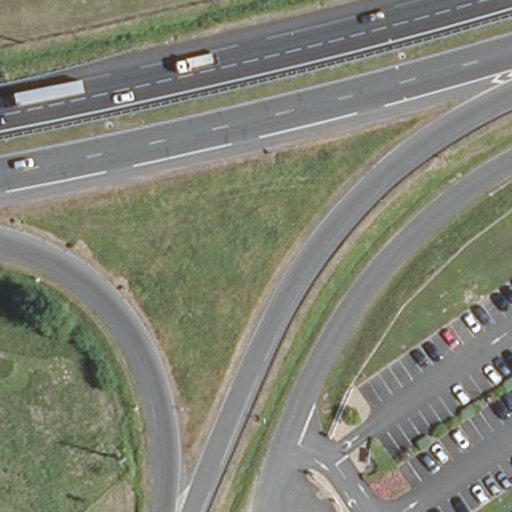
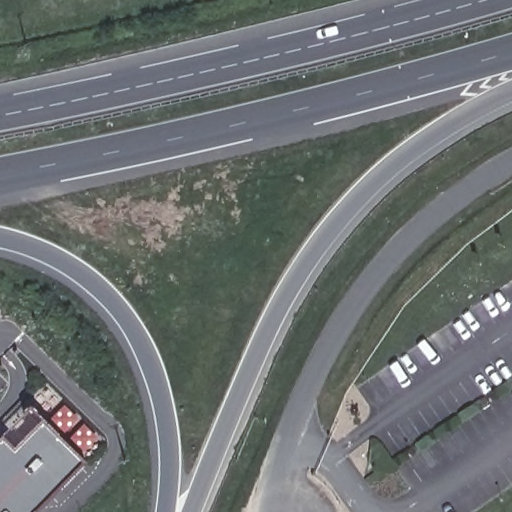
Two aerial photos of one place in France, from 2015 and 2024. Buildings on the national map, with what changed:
new [(0,512),(0,441),(8,433),(19,446),(49,419),(89,463),(37,512),(0,512)]

